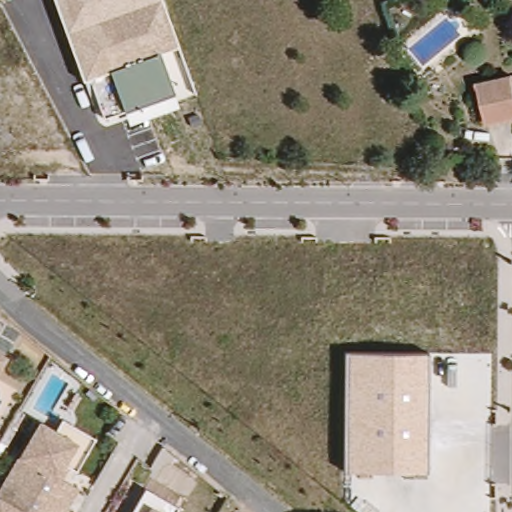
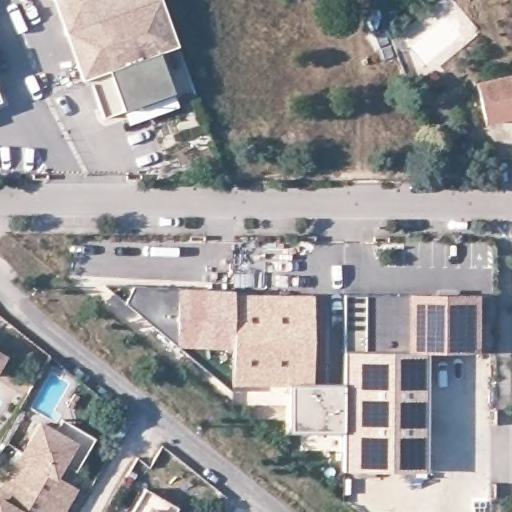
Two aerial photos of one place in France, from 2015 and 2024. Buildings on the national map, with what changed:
unchanged [(54,0),(162,0),(178,45),(159,52),(174,93),(178,107),(129,125),(124,110),(105,117),(91,78),(83,81),(54,0)]
unchanged [(482,125),(478,85),(512,78),(512,118),(482,125)]
new [(1,100),(0,101),(0,99),(1,100)]
new [(168,341),(142,319),(104,289),(234,290),(234,294),(233,385),(233,391),(232,391),(168,341)]
new [(314,294),(313,384),(344,385),(344,431),(291,430),(292,385),(233,385),(234,294),(314,294)]
new [(428,353),(346,351),(345,295),(478,296),(477,353),(428,353)]
unchanged [(346,351),(428,353),(427,473),(345,472),(346,351)]
unchanged [(5,358),(0,366),(0,356),(5,358)]
new [(344,382),(344,385),(313,384),(313,382),(344,382)]
unchanged [(71,480),(81,485),(66,512),(0,512),(0,487),(40,419),(57,429),(61,422),(91,439),(71,480)]
unchanged [(173,512),(129,512),(143,490),(176,508),(173,512)]

